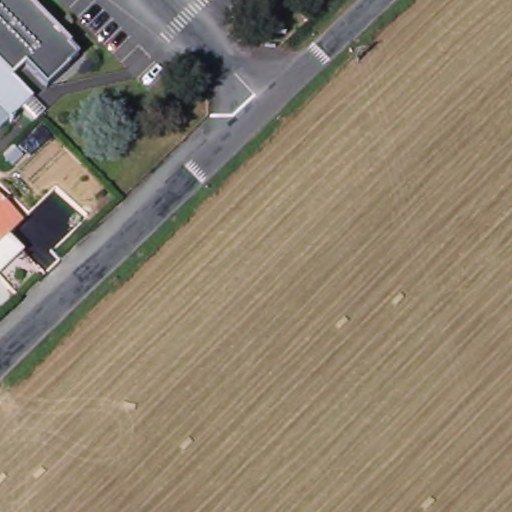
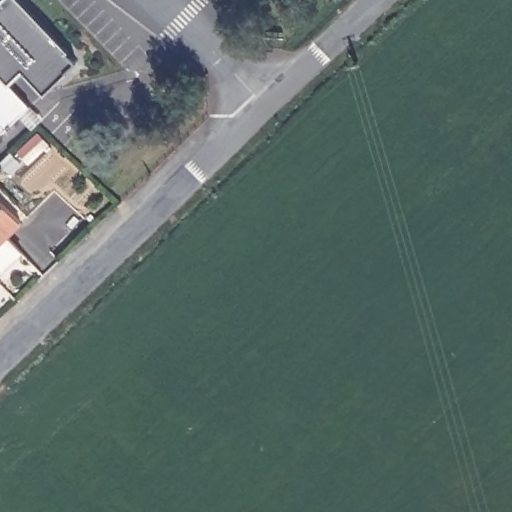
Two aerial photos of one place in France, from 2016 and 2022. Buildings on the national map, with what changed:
unchanged [(0,0),(4,0),(0,3),(0,0)]
unchanged [(0,3),(4,0),(25,0),(58,29),(79,57),(49,89),(26,68),(13,78),(0,62),(0,3)]
unchanged [(36,104),(1,134),(0,133),(0,62),(13,78),(36,104)]
unchanged [(8,239),(24,254),(0,278),(0,202),(22,224),(8,239)]

